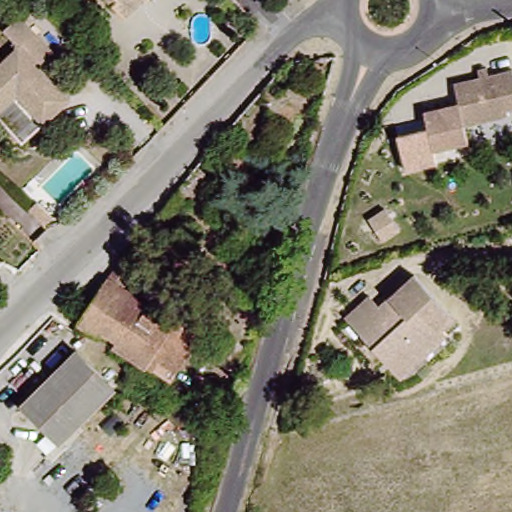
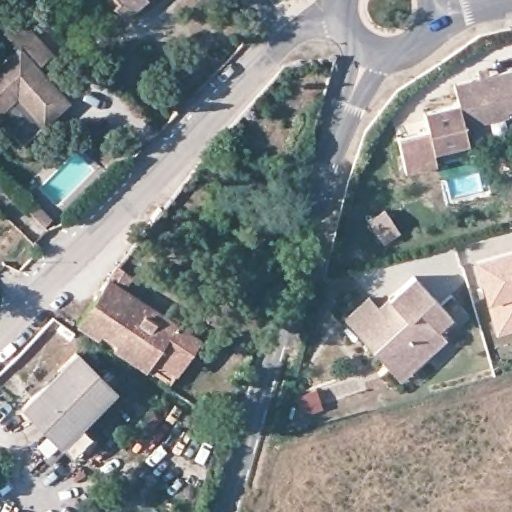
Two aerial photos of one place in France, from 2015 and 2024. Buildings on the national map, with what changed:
unchanged [(106,0),(137,0),(119,15),(106,0)]
unchanged [(1,26),(17,13),(51,51),(34,63),(66,101),(38,125),(12,94),(0,104),(0,57),(16,44),(1,26)]
unchanged [(507,117),(508,123),(462,134),(452,91),(480,85),(477,76),(487,73),(489,81),(512,76),(512,115),(507,117)]
unchanged [(38,125),(17,144),(0,125),(0,104),(12,94),(38,125)]
unchanged [(462,134),(464,146),(432,153),(435,165),(405,173),(398,136),(427,130),(423,111),(455,105),(462,134)]
new [(385,205),(399,230),(382,241),(367,217),(385,205)]
unchanged [(51,236),(59,230),(75,246),(66,252),(51,236)]
new [(512,249),(512,328),(495,333),(472,262),(512,249)]
unchanged [(372,351),(339,321),(365,295),(374,304),(387,291),(406,273),(444,310),(449,314),(435,328),(432,323),(418,339),(444,332),(400,376),(386,362),(372,351)]
unchanged [(106,282),(204,343),(170,393),(75,324),(106,282)]
unchanged [(79,358),(117,398),(60,454),(21,413),(79,358)]

